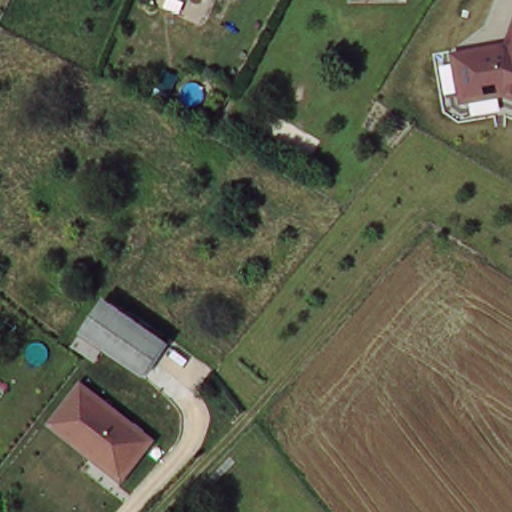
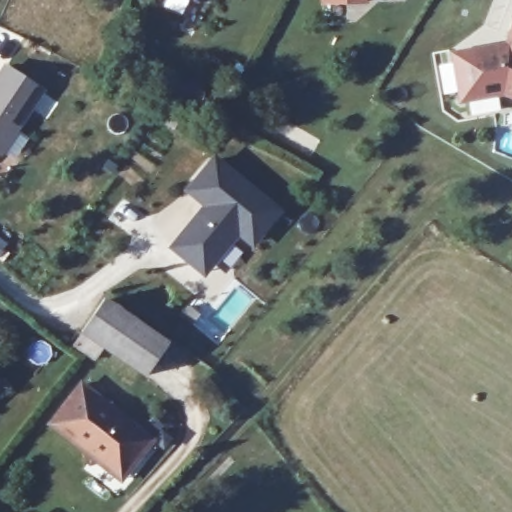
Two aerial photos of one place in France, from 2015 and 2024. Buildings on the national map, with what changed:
unchanged [(505,96),(459,103),(452,53),(505,43),(512,25),(512,99),(505,96)]
new [(45,86),(3,148),(0,146),(0,76),(10,62),(45,86)]
new [(193,258),(176,244),(203,211),(210,217),(217,209),(192,188),(217,157),(280,209),(255,240),(238,227),(217,255),(206,269),(193,258)]
unchanged [(102,344),(93,355),(71,340),(100,296),(162,341),(140,371),(102,344)]
unchanged [(155,439),(121,484),(47,424),(83,382),(155,439)]

